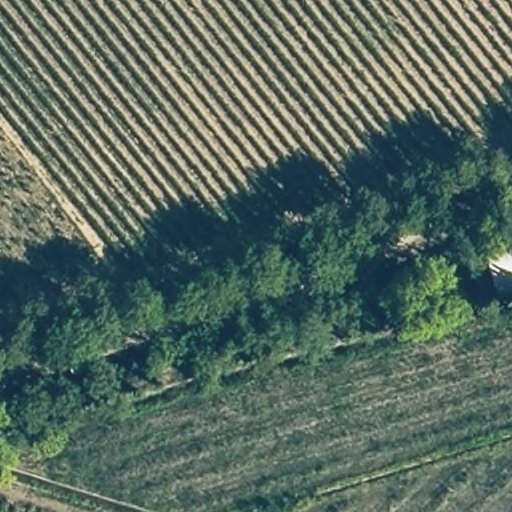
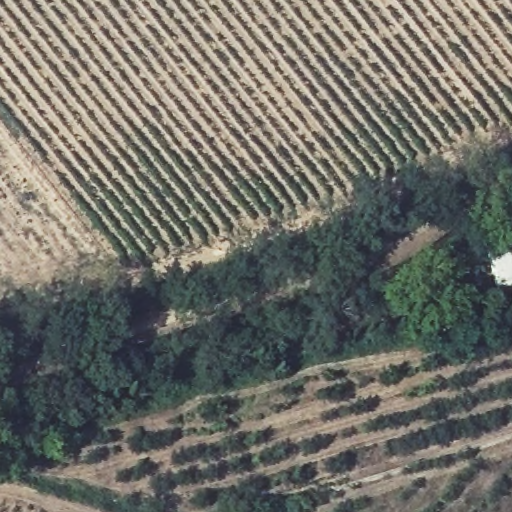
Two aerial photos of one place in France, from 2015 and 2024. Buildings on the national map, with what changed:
unchanged [(512,287),(498,290),(484,250),(512,244),(512,287)]

